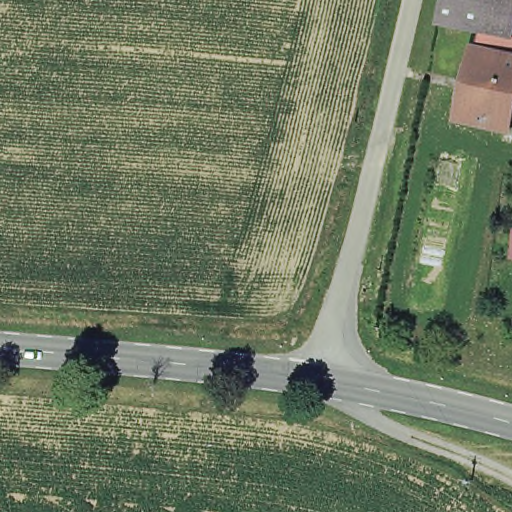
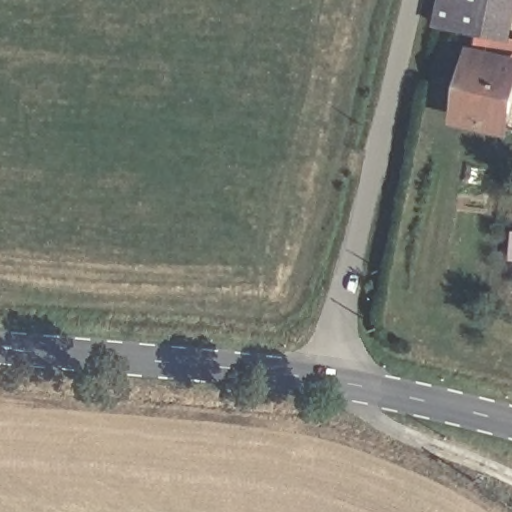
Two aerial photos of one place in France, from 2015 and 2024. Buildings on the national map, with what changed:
unchanged [(439,0),(512,0),(512,39),(433,26),(439,0)]
unchanged [(512,134),(512,136),(453,123),(474,42),(512,51),(512,134)]

